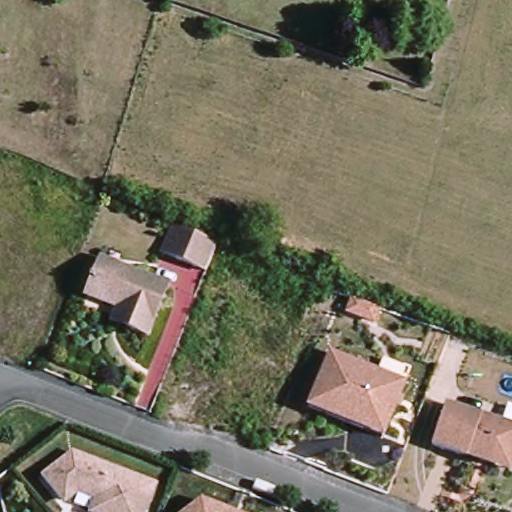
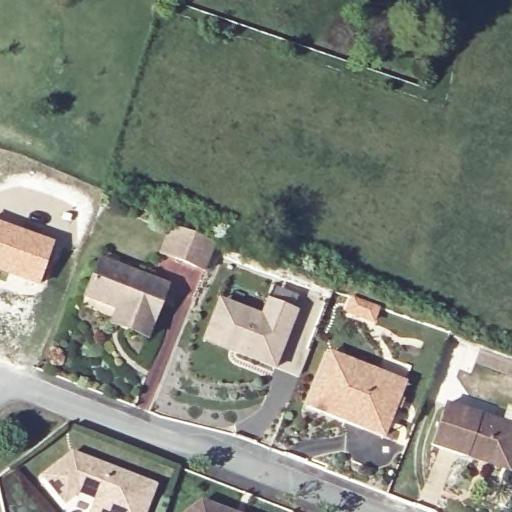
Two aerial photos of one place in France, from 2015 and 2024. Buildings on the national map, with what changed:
new [(55,240),(38,286),(0,273),(0,221),(55,240)]
unchanged [(200,268),(166,255),(177,227),(211,240),(220,245),(209,271),(200,268)]
unchanged [(118,309),(86,296),(100,260),(168,286),(148,338),(128,330),(112,324),(118,309)]
new [(266,300),(295,311),(272,368),(233,353),(201,341),(218,299),(223,301),(259,316),(266,300)]
unchanged [(373,308),(367,323),(348,315),(354,300),(373,308)]
unchanged [(385,437),(312,408),(333,353),(407,383),(385,437)]
unchanged [(447,401),(512,427),(512,459),(507,470),(467,454),(432,440),(447,401)]
unchanged [(96,495),(76,487),(62,499),(43,475),(71,452),(151,482),(141,512),(90,512),(91,509),(96,495)]
unchanged [(239,512),(185,512),(203,498),(239,512)]

